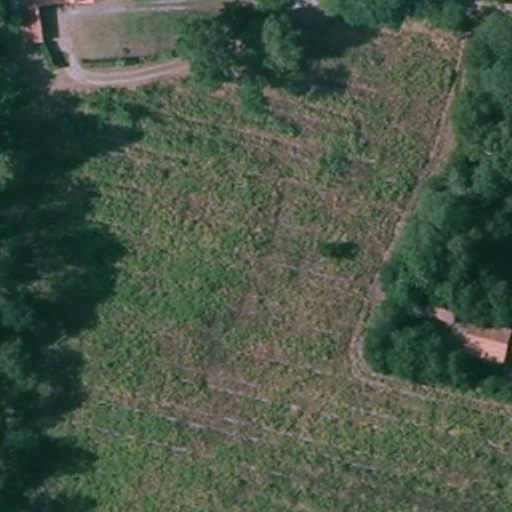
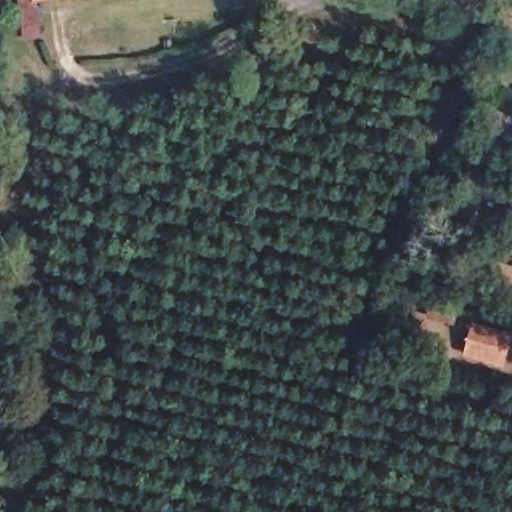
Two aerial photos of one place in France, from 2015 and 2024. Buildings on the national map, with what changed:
unchanged [(39,5),(42,41),(26,44),(24,6),(14,6),(14,0),(84,0),(39,5)]
unchanged [(481,280),(486,265),(512,273),(512,289),(481,280)]
unchanged [(500,370),(469,358),(481,329),(511,340),(500,370)]

